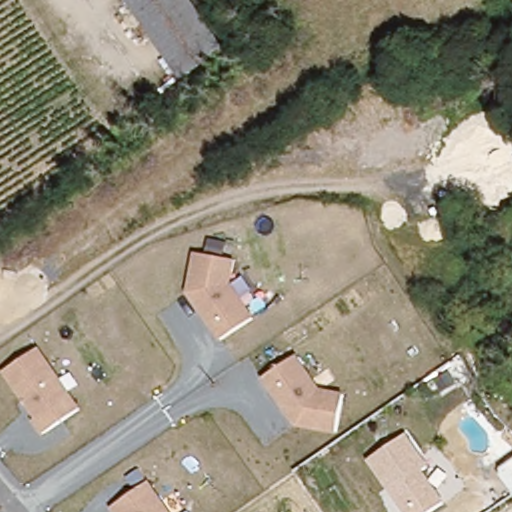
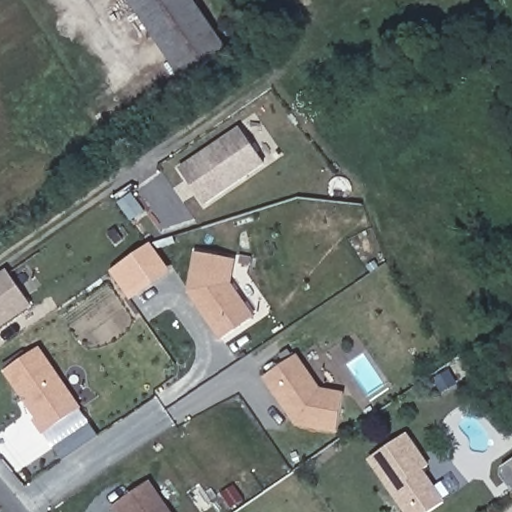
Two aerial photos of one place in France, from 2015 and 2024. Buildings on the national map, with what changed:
unchanged [(138,22),(124,0),(171,0),(138,22)]
unchanged [(199,18),(154,47),(138,22),(171,0),(186,0),(199,18)]
unchanged [(199,18),(218,48),(174,77),(154,47),(199,18)]
new [(204,205),(178,168),(239,125),(266,163),(204,205)]
new [(110,272),(151,243),(171,272),(130,301),(110,272)]
unchanged [(237,259),(232,285),(257,316),(220,340),(189,293),(195,252),(237,259)]
new [(0,274),(6,270),(32,305),(0,327),(0,274)]
unchanged [(83,407),(45,433),(5,373),(40,347),(83,407)]
unchanged [(320,385),(343,391),(337,432),(296,426),(265,377),(299,354),(320,385)]
unchanged [(432,464),(424,469),(445,503),(431,512),(403,512),(367,460),(408,431),(432,464)]
new [(512,459),(512,492),(496,471),(512,459)]
unchanged [(113,512),(111,509),(149,481),(172,512),(113,512)]

